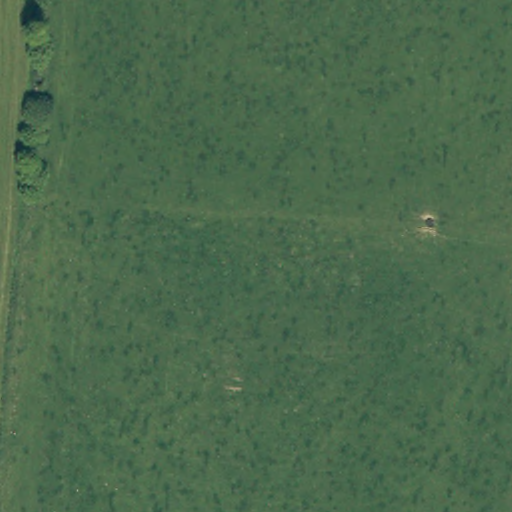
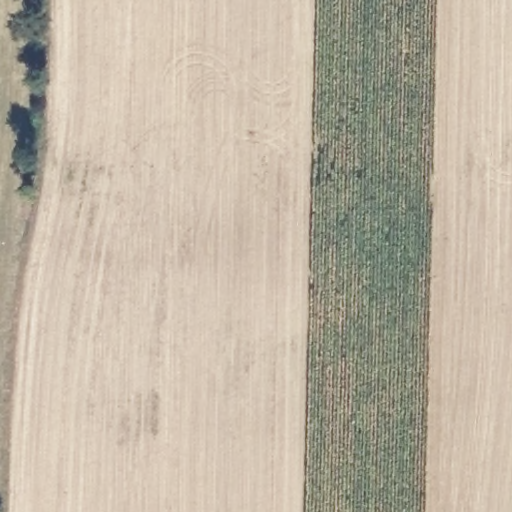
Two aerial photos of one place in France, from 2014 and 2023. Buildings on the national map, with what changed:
[]

